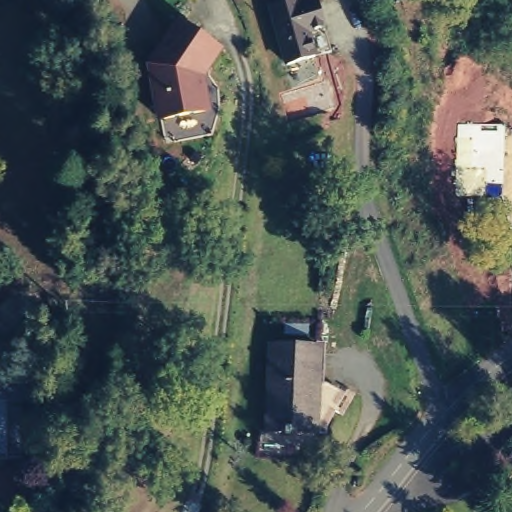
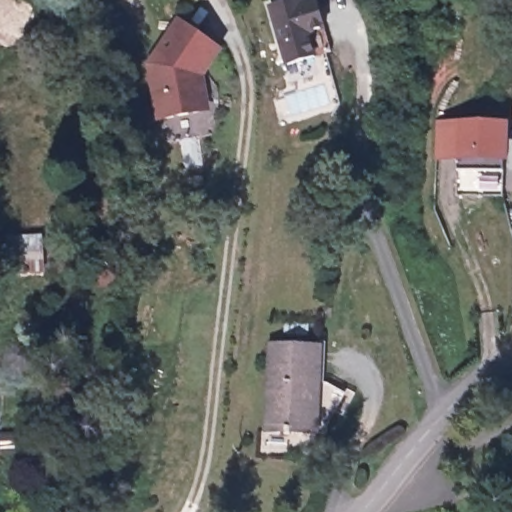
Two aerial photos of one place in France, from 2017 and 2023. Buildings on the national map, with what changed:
unchanged [(313,36),(318,58),(284,67),(268,6),(288,0),(306,0),(306,2),(315,0),(320,0),(328,32),(313,36)]
unchanged [(205,77),(211,114),(159,122),(151,64),(181,21),(224,49),(205,77)]
new [(508,122),(508,161),(503,161),(503,171),(458,169),(457,160),(434,160),(436,122),(508,122)]
unchanged [(269,346),(320,347),(316,430),(261,426),(269,346)]
unchanged [(101,410),(145,412),(144,430),(100,427),(101,410)]

